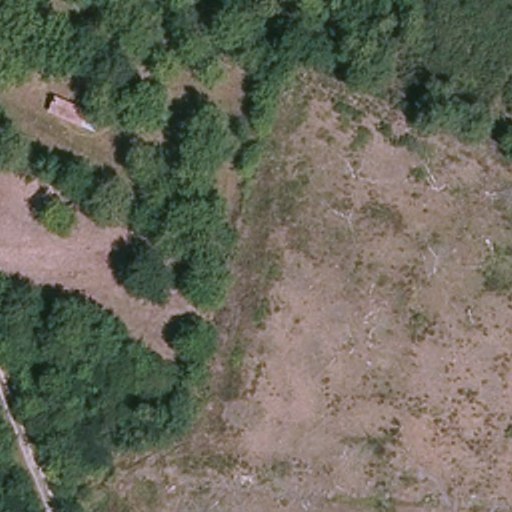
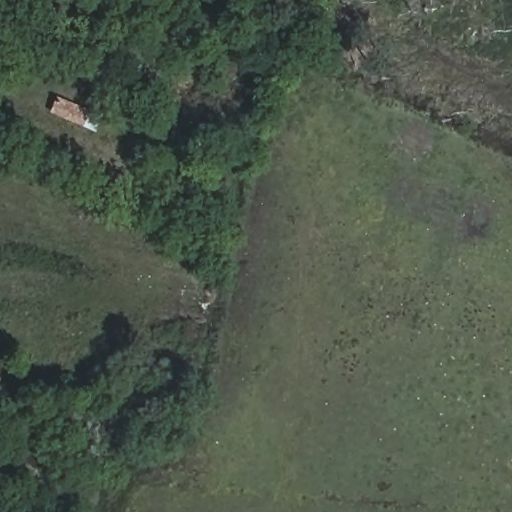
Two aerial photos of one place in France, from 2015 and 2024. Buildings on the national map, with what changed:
unchanged [(84,106),(78,130),(49,119),(55,96),(84,106)]

